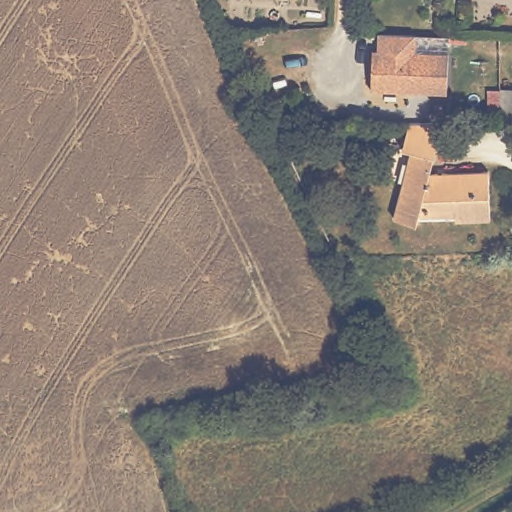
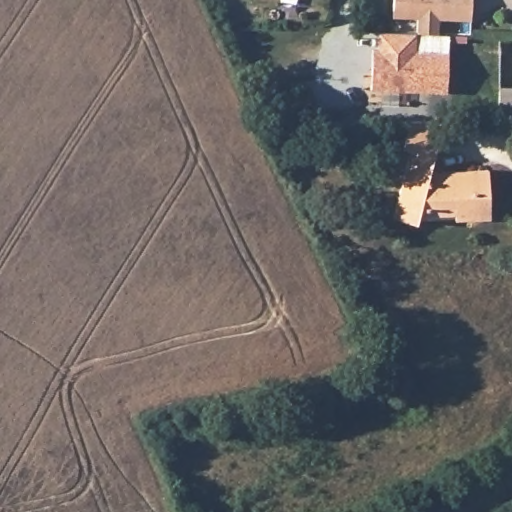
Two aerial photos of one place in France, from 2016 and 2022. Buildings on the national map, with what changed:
new [(440,21),(440,38),(417,36),(417,19),(393,19),(394,0),(473,0),(472,21),(440,21)]
unchanged [(377,51),(378,34),(448,38),(447,96),(369,94),(372,53),(377,51)]
unchanged [(507,121),(497,121),(500,89),(512,89),(512,121),(507,121)]
unchanged [(456,221),(455,207),(422,208),(417,224),(394,219),(412,151),(403,149),(409,123),(428,123),(442,123),(431,170),(435,173),(488,170),(491,219),(456,221)]

